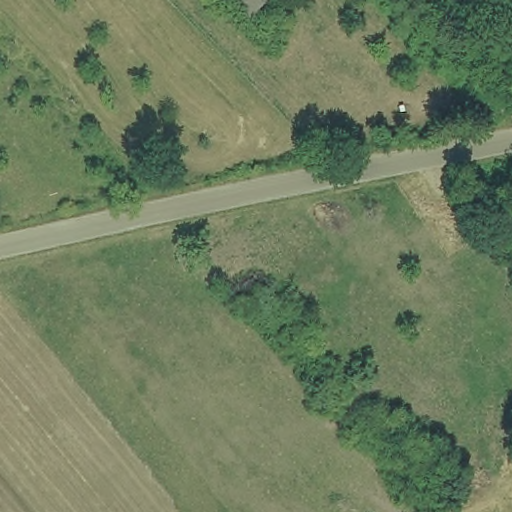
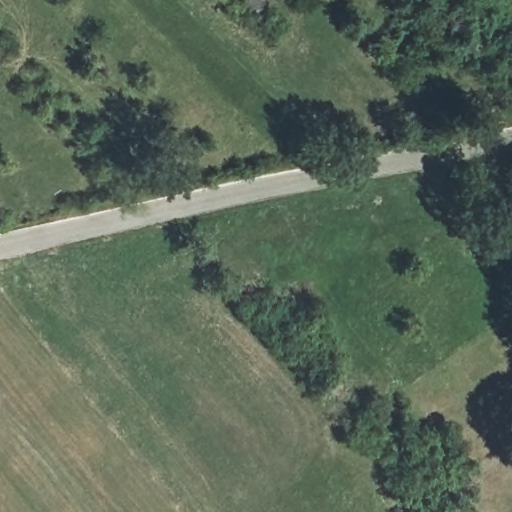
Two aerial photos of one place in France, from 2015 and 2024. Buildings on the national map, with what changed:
unchanged [(241,0),(272,0),(258,17),(240,1),(241,0)]

